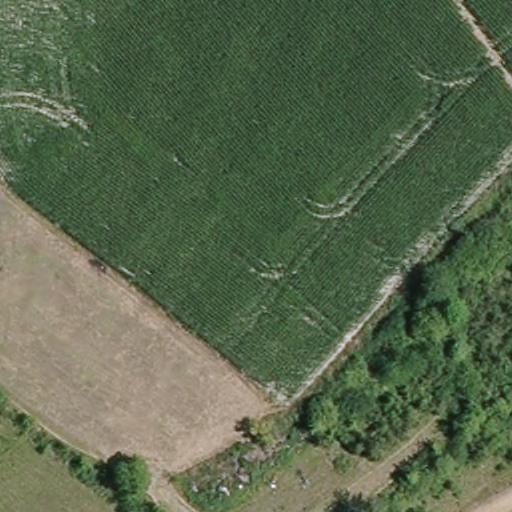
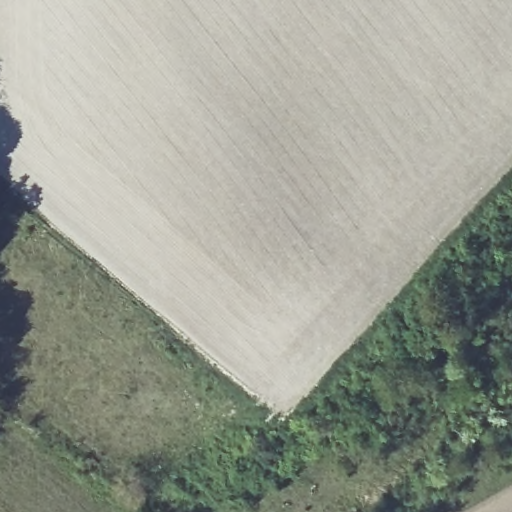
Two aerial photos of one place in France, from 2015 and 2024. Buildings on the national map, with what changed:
[]

